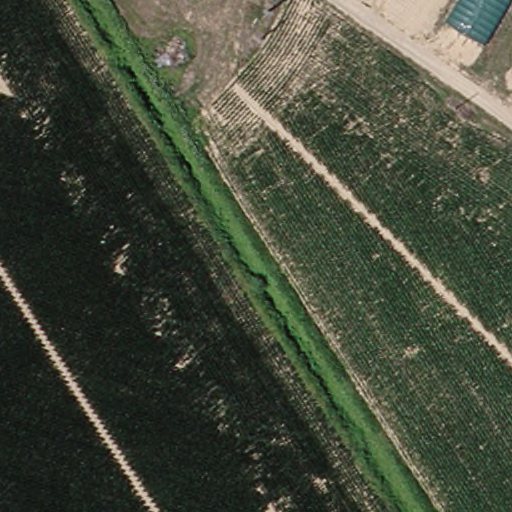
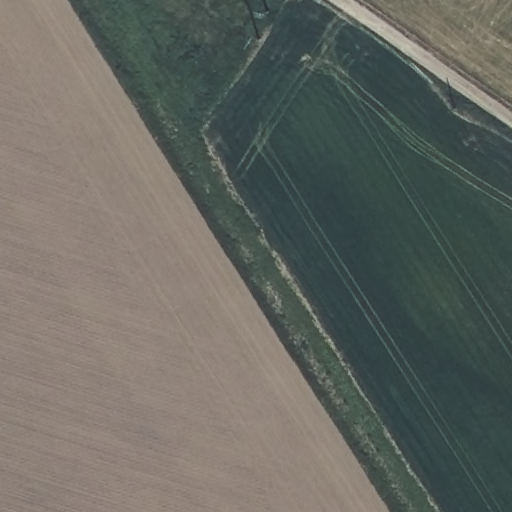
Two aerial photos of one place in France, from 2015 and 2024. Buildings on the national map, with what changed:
demolished [(405,0),(413,0),(411,4),(405,0)]
demolished [(443,20),(455,0),(507,0),(481,43),(443,20)]

